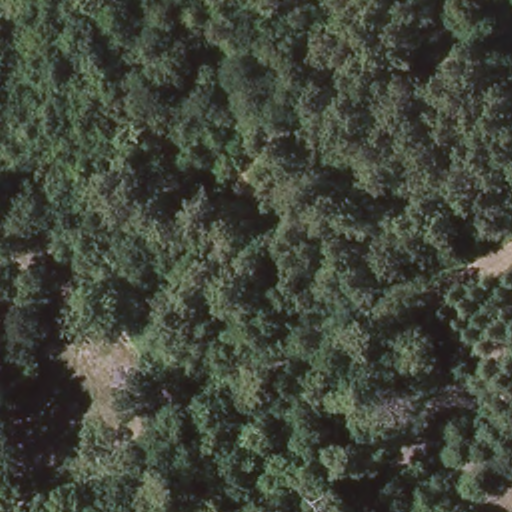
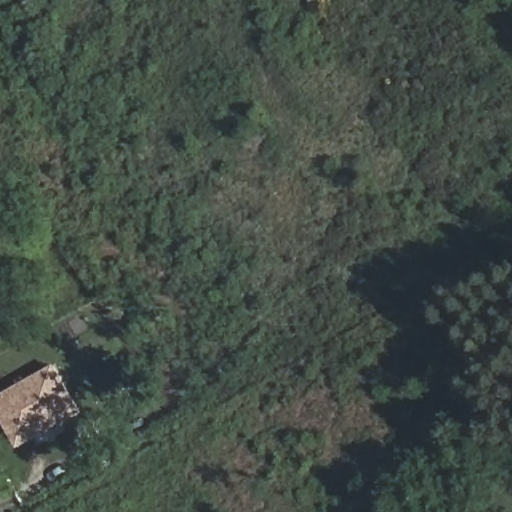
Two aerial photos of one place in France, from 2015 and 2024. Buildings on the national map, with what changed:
new [(19,449),(0,415),(0,396),(57,364),(83,413),(19,449)]

